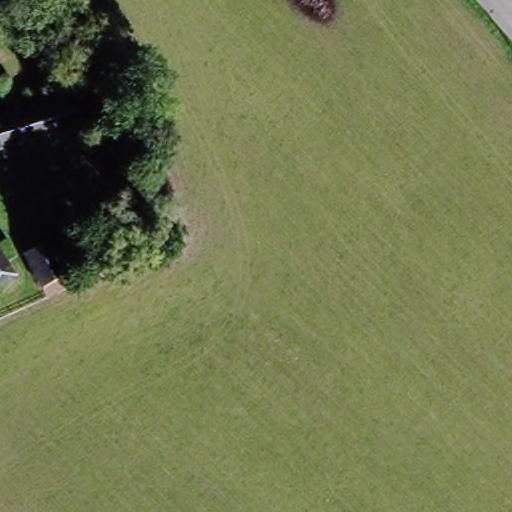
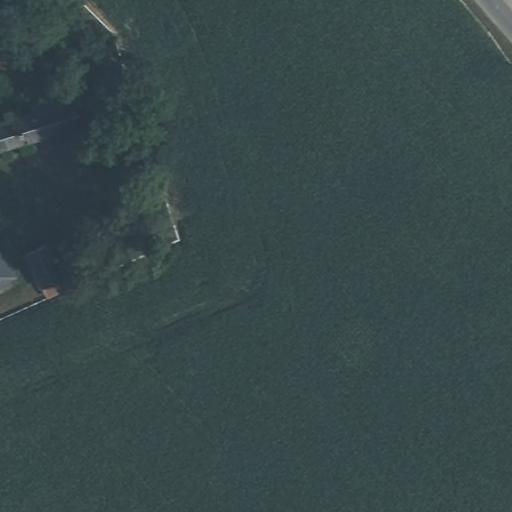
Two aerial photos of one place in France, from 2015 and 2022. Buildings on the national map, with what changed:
unchanged [(0,149),(0,128),(37,115),(33,105),(68,93),(78,122),(0,149)]
unchanged [(48,241),(65,273),(43,285),(26,252),(48,241)]
unchanged [(0,243),(13,264),(0,271),(0,243)]

